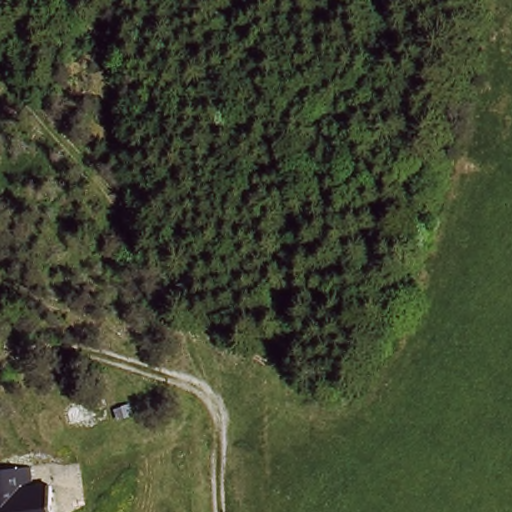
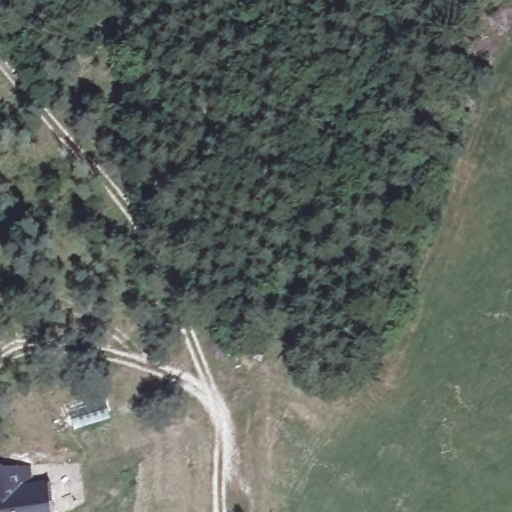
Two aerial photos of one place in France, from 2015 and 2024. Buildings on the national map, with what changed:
unchanged [(33,490),(56,486),(58,512),(0,512),(0,474),(31,469),(33,490)]

